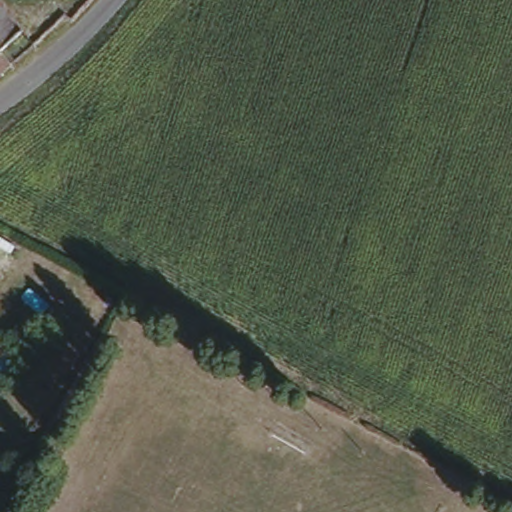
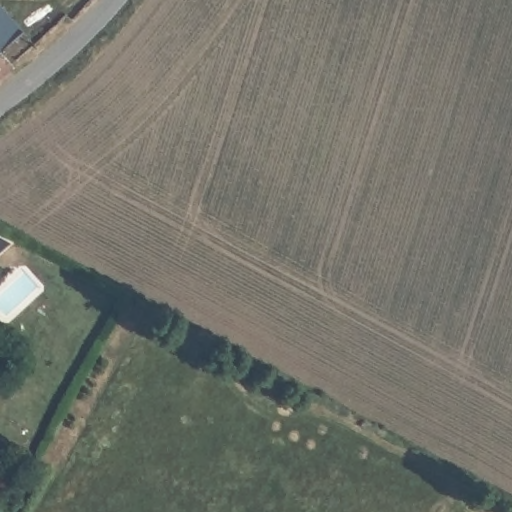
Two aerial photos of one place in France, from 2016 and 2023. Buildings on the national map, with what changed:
unchanged [(1,51),(10,60),(0,69),(0,10),(23,30),(1,51)]

